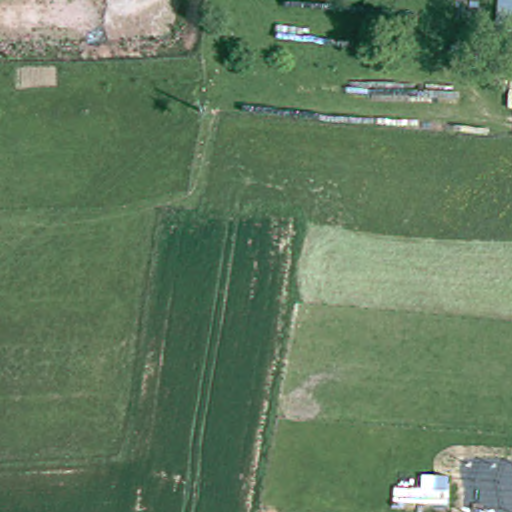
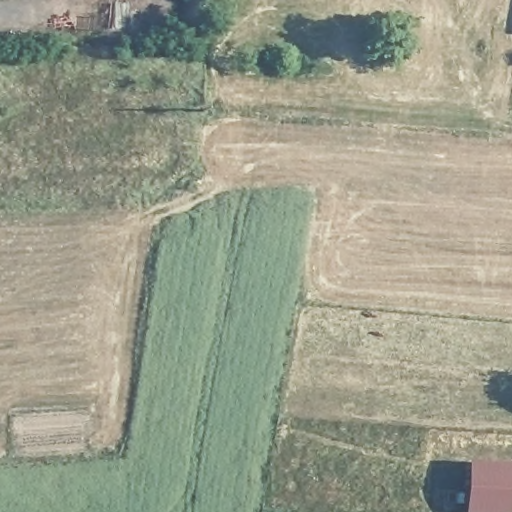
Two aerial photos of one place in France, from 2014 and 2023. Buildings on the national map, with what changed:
unchanged [(500,31),(503,0),(512,0),(512,33),(500,31)]
new [(466,461),(512,464),(512,512),(463,512),(466,461)]

